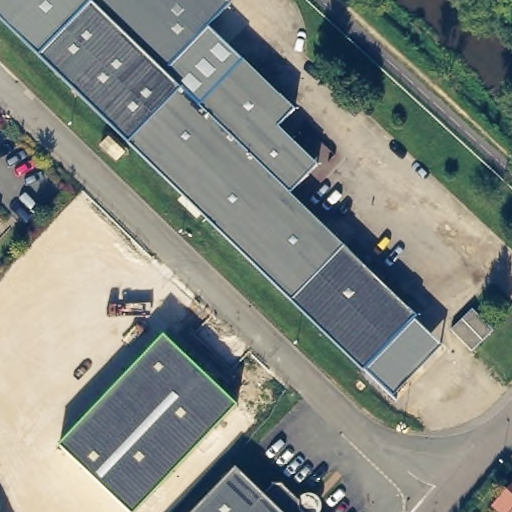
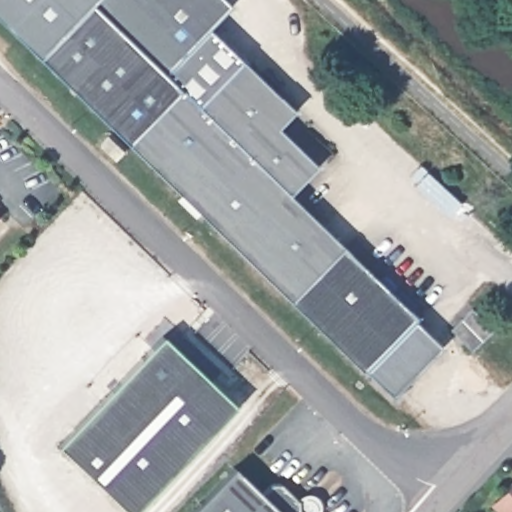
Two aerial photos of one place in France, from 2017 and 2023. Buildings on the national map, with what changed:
unchanged [(0,19),(0,0),(90,0),(38,54),(0,19)]
unchanged [(90,0),(92,0),(144,53),(93,106),(38,54),(90,0)]
unchanged [(164,73),(144,53),(92,0),(226,0),(231,5),(164,73)]
unchanged [(164,73),(179,89),(196,104),(243,58),(286,98),(296,106),(287,116),(279,125),(309,154),(319,164),(310,174),(293,193),(417,314),(363,369),(128,141),(93,106),(144,53),(164,73)]
unchanged [(483,318),(504,338),(488,354),(482,359),(462,340),(471,330),(483,318)]
unchanged [(393,396),(363,369),(412,319),(441,347),(393,396)]
unchanged [(133,512),(120,512),(53,448),(158,338),(184,363),(189,358),(201,369),(196,374),(232,408),(133,512)]
unchanged [(235,465),(263,492),(273,481),(282,481),(301,499),(301,507),(305,512),(190,512),(235,465)]
unchanged [(512,505),(512,512),(508,512),(507,511),(512,505)]

